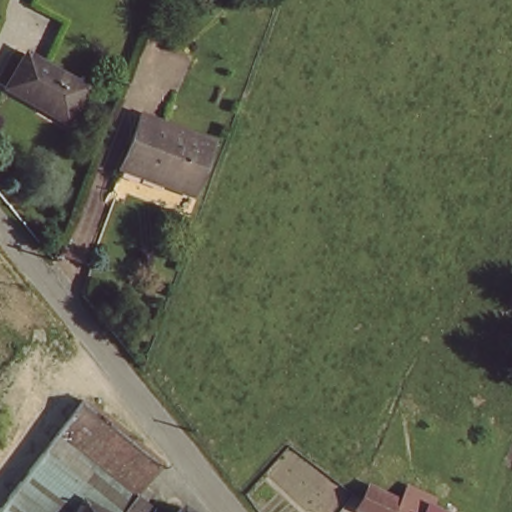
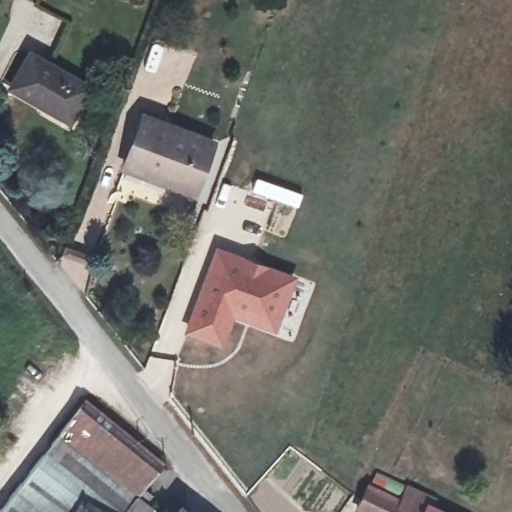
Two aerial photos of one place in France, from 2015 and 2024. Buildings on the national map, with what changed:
unchanged [(38,110),(5,93),(26,56),(68,79),(84,87),(68,117),(64,125),(38,110)]
unchanged [(148,172),(146,179),(125,172),(141,120),(215,141),(201,187),(148,172)]
new [(276,332),(233,318),(222,346),(183,332),(214,246),(297,275),(276,332)]
unchanged [(157,460),(139,483),(149,491),(141,502),(146,506),(141,512),(97,512),(78,501),(72,512),(0,512),(0,507),(82,400),(157,460)]
unchanged [(372,491),(418,512),(363,512),(372,491)]
unchanged [(78,501),(97,512),(72,512),(78,501)]
unchanged [(179,505),(188,512),(174,512),(179,505)]
unchanged [(146,506),(153,512),(141,512),(146,506)]
unchanged [(429,510),(435,512),(428,512),(429,510)]

